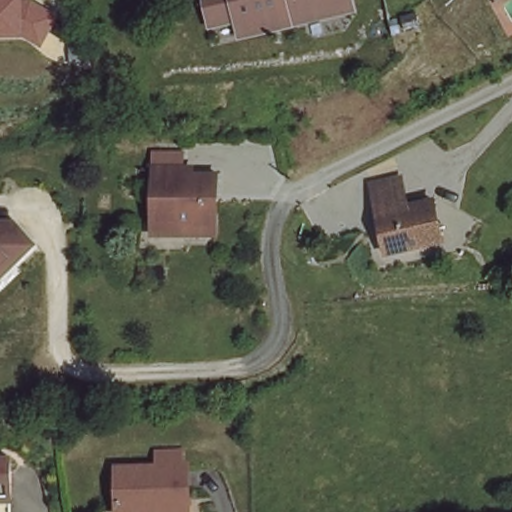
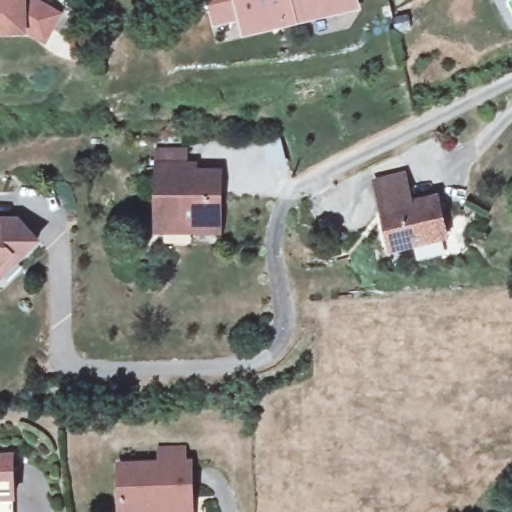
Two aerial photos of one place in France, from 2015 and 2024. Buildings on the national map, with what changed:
unchanged [(62,14),(48,45),(28,33),(0,33),(0,0),(40,0),(62,14)]
unchanged [(326,7),(263,22),(260,6),(259,6),(221,15),(217,0),(325,0),(326,7)]
unchanged [(159,224),(159,202),(155,198),(155,170),(186,170),(195,170),(195,176),(220,176),(220,204),(217,204),(217,235),(192,235),(159,234),(159,224)]
unchanged [(388,250),(376,192),(405,186),(411,211),(437,206),(445,245),(406,253),(390,257),(388,250)]
unchanged [(15,217),(35,239),(14,260),(7,253),(0,260),(0,220),(6,226),(15,217)]
unchanged [(119,469),(156,467),(156,453),(183,451),(183,466),(189,466),(191,512),(120,512),(120,510),(119,469)]
unchanged [(12,503),(0,503),(0,461),(11,461),(12,503)]

